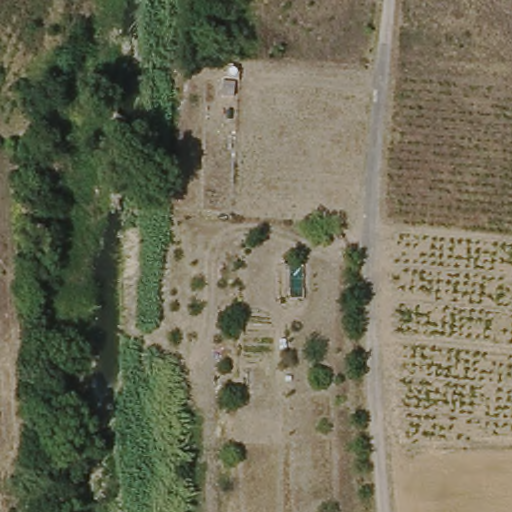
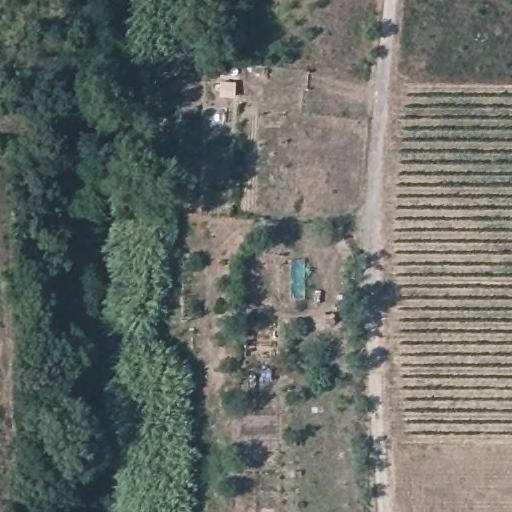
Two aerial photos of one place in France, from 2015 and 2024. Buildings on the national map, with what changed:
unchanged [(214,96),(215,75),(234,76),(231,98),(214,96)]

